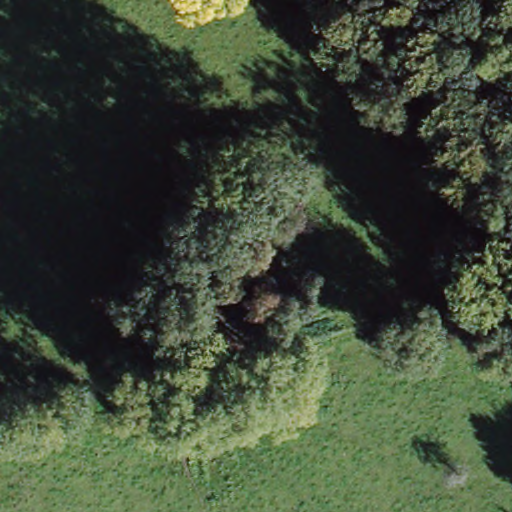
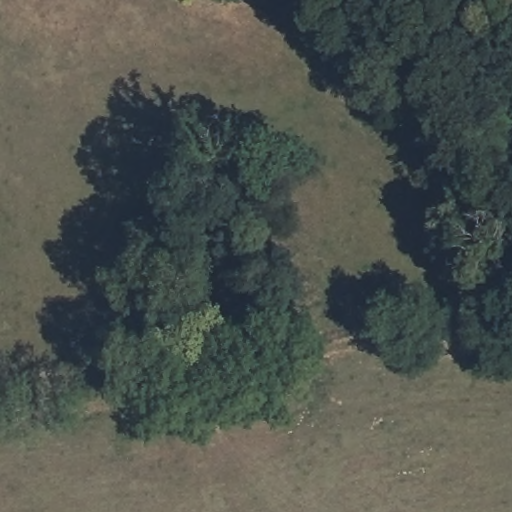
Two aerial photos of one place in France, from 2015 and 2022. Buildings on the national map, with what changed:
[]

